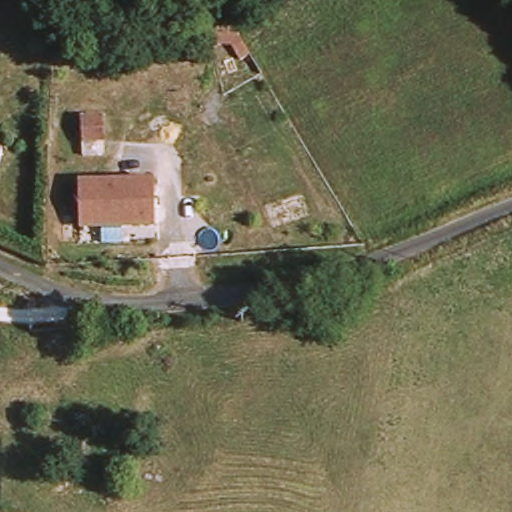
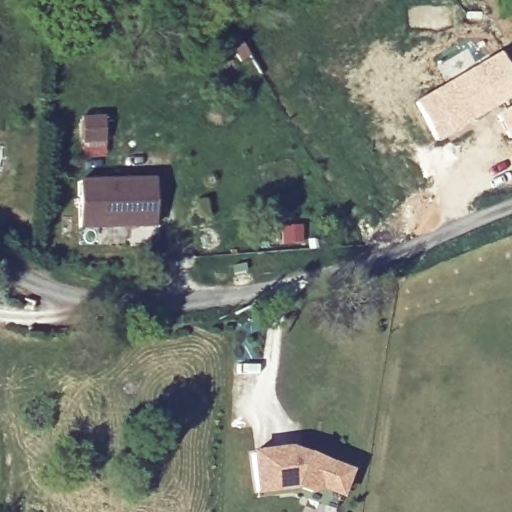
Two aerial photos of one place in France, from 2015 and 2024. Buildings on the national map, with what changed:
new [(467,47),(476,62),(497,50),(512,75),(512,98),(493,109),(437,141),(413,101),(445,82),(436,65),(467,47)]
new [(512,137),(510,138),(493,109),(512,98),(512,137)]
unchanged [(151,184),(152,229),(77,230),(76,185),(151,184)]
new [(248,453),(286,447),(305,454),(350,471),(340,498),(318,490),(312,495),(293,489),(254,495),(248,453)]

